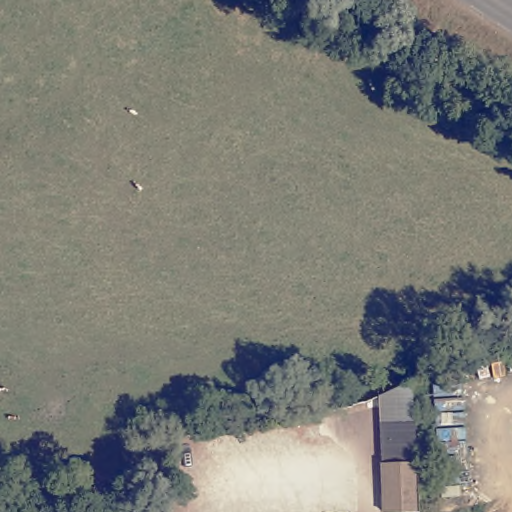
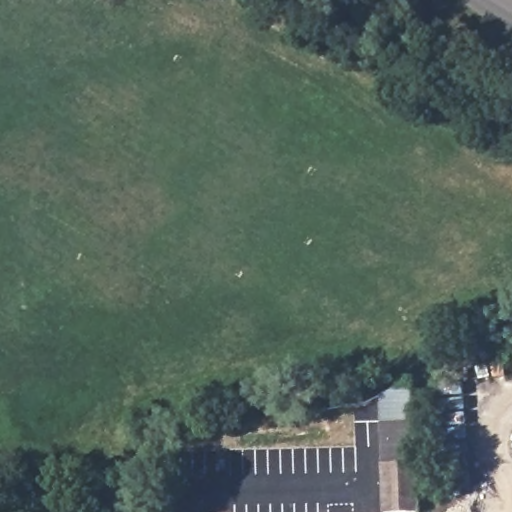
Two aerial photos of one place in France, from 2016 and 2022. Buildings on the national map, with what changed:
unchanged [(402,383),(413,383),(418,459),(385,461),(380,397),(402,383)]
unchanged [(388,507),(385,461),(418,459),(420,506),(388,507)]

